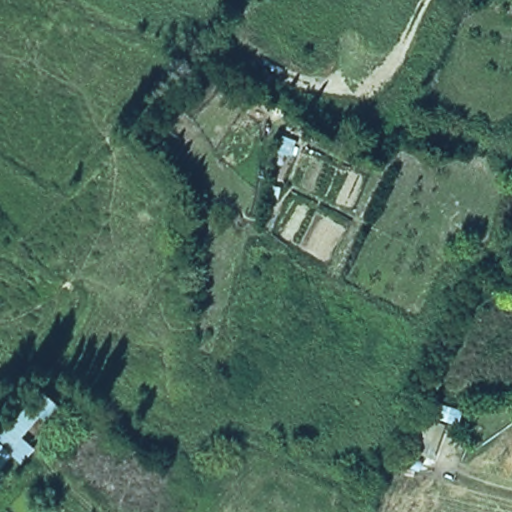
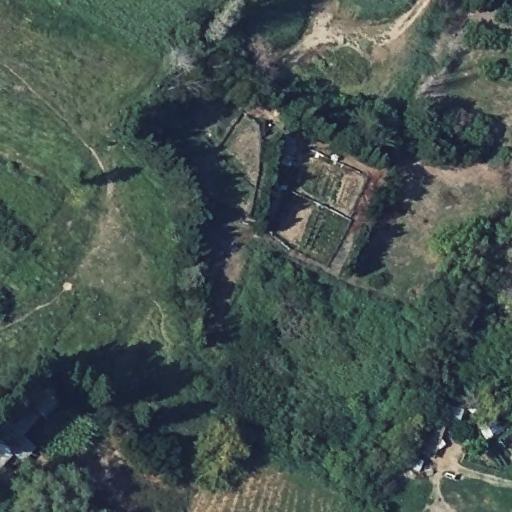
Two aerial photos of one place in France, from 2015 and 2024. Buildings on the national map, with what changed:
unchanged [(294,136),(290,171),(271,168),(276,134),(294,136)]
unchanged [(25,437),(31,448),(20,462),(0,445),(0,421),(21,395),(29,400),(40,385),(55,400),(25,437)]
unchanged [(450,428),(437,464),(431,462),(427,474),(402,467),(406,453),(417,417),(450,428)]

